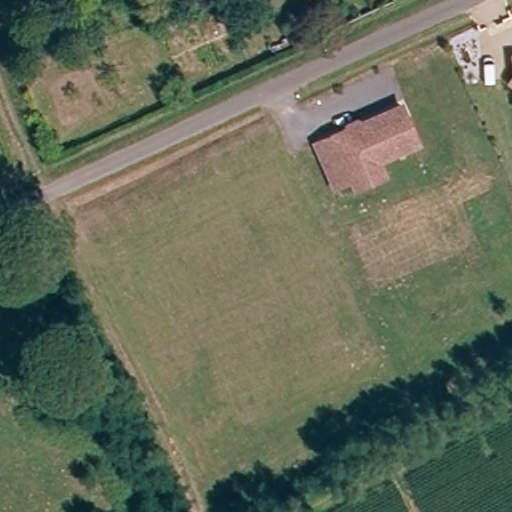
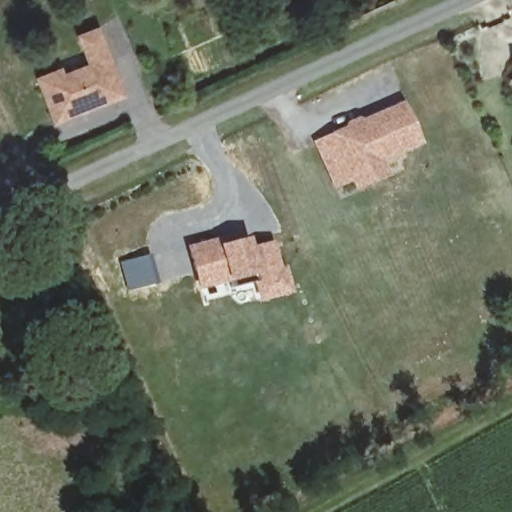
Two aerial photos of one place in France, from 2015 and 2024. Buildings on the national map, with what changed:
new [(126,96),(54,124),(34,77),(60,68),(62,74),(89,63),(75,34),(97,25),(126,96)]
unchanged [(361,182),(357,175),(340,182),(320,140),(406,101),(422,137),(382,156),(388,171),(361,182)]
new [(239,240),(249,237),(251,247),(273,241),(280,267),(285,266),(292,293),(257,303),(252,275),(226,281),(197,289),(186,247),(235,232),(239,240)]

